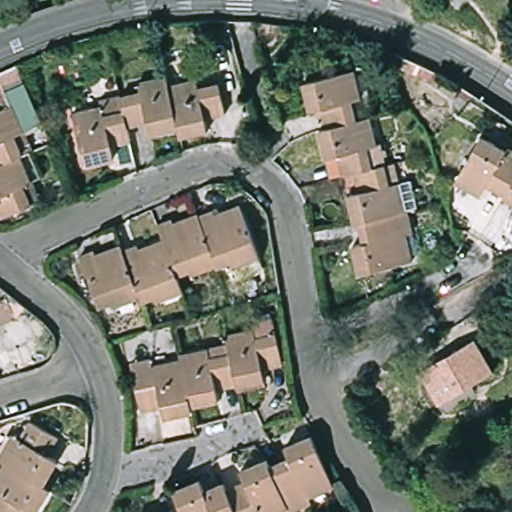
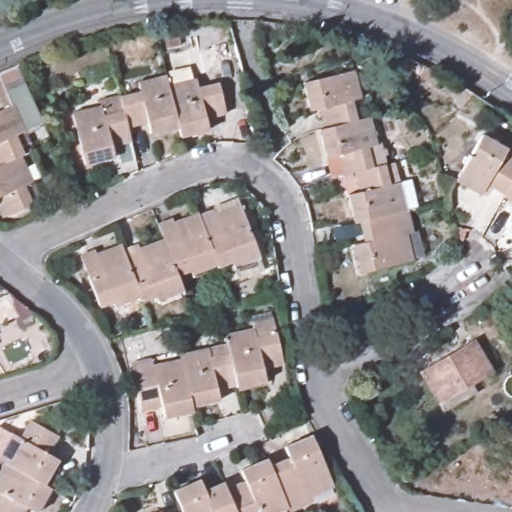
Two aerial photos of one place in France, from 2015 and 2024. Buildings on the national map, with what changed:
unchanged [(319,109),(308,112),(300,84),(347,72),(354,100),(345,102),(351,123),(325,130),(319,109)]
unchanged [(175,127),(147,135),(144,122),(125,127),(121,112),(117,98),(136,92),(134,84),(164,77),(166,87),(175,127)]
unchanged [(193,80),(195,90),(209,87),(216,85),(223,115),(203,120),(205,132),(178,139),(175,127),(166,87),(193,80)]
unchanged [(121,112),(125,127),(128,142),(108,147),(110,157),(84,164),(71,114),(87,110),(98,107),(96,99),(116,95),(117,98),(121,112)]
unchanged [(0,166),(0,110),(9,107),(21,134),(30,153),(21,157),(18,158),(0,166)]
unchanged [(339,177),(334,157),(324,159),(317,132),(325,130),(351,123),(365,119),(378,167),(368,170),(350,174),(339,177)]
unchanged [(484,186),(477,197),(452,184),(479,139),(503,153),(505,150),(512,153),(512,180),(502,197),(484,186)]
unchanged [(26,176),(30,185),(21,189),(29,207),(3,220),(0,214),(0,166),(18,158),(26,176)]
unchanged [(378,167),(388,164),(393,184),(405,181),(412,208),(402,211),(356,223),(352,224),(348,210),(345,197),(355,194),(350,174),(368,170),(378,167)]
unchanged [(502,197),(512,180),(512,206),(500,199),(502,197)]
unchanged [(210,213),(211,216),(237,207),(257,261),(231,270),(228,263),(215,268),(196,218),(210,213)]
unchanged [(400,211),(402,211),(408,232),(401,235),(409,262),(356,276),(349,249),(362,245),(356,223),(400,211)]
unchanged [(215,268),(215,270),(189,279),(186,272),(173,276),(161,242),(155,225),(167,221),(169,222),(170,224),(193,216),(195,217),(196,218),(215,268)]
unchanged [(173,276),(181,296),(156,305),(153,298),(139,303),(138,302),(120,252),(134,248),(136,250),(161,242),(173,276)]
unchanged [(113,311),(109,303),(97,307),(77,256),(91,251),(92,255),(118,246),(120,252),(138,302),(113,311)]
unchanged [(7,296),(15,316),(0,322),(0,299),(7,296)]
unchanged [(252,331),(251,326),(270,322),(273,337),(279,367),(260,371),(262,382),(234,388),(233,386),(227,355),(224,337),(252,331)]
unchanged [(490,372),(435,404),(417,374),(472,342),(490,372)]
unchanged [(233,386),(214,390),(215,397),(216,402),(188,408),(178,363),(177,357),(205,352),(206,360),(227,355),(233,386)]
unchanged [(189,412),(171,417),(161,418),(158,406),(138,411),(132,382),(152,377),(150,369),(178,363),(188,408),(189,412)]
unchanged [(4,458),(0,456),(0,449),(8,438),(12,432),(19,435),(30,417),(55,433),(45,450),(54,456),(42,480),(4,458)]
unchanged [(284,452),(280,440),(305,430),(326,479),(301,489),(303,494),(282,502),(280,498),(264,460),(284,452)]
unchanged [(220,482),(238,473),(235,462),(261,452),(264,460),(280,498),(254,508),(251,502),(231,510),(229,502),(220,482)]
unchanged [(4,458),(42,480),(47,483),(33,508),(22,502),(16,512),(0,512),(0,465),(4,458)]
unchanged [(192,473),(196,482),(217,475),(220,482),(229,502),(209,511),(209,512),(178,512),(177,507),(166,483),(192,473)]
unchanged [(155,512),(134,512),(152,505),(155,512)]
unchanged [(178,512),(167,512),(177,507),(178,512)]

